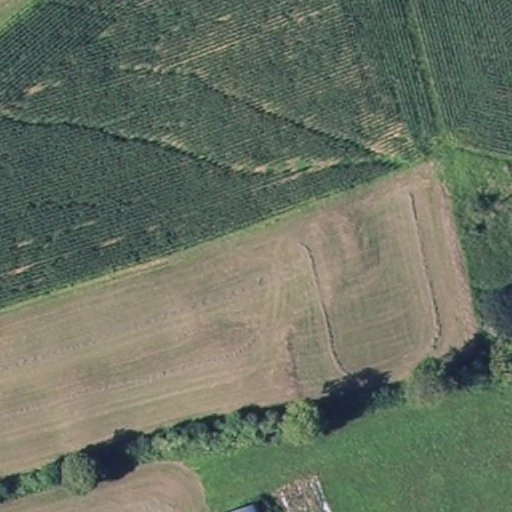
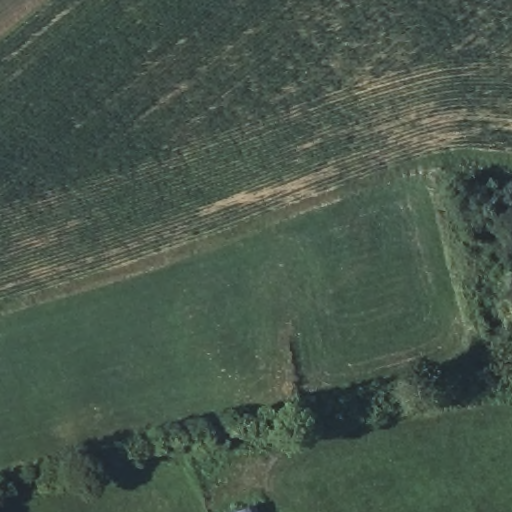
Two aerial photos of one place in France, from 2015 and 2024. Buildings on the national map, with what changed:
unchanged [(261,510),(262,512),(255,512),(261,510)]

